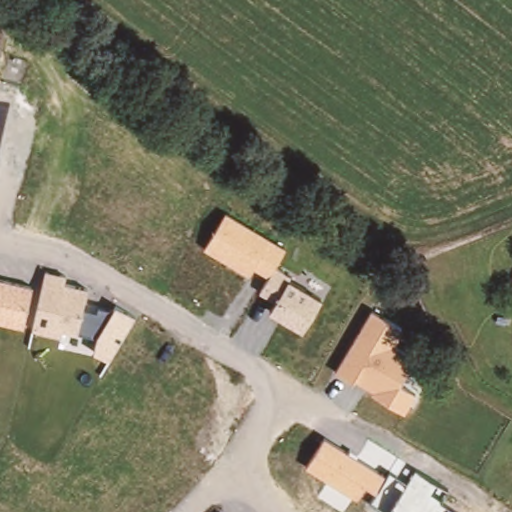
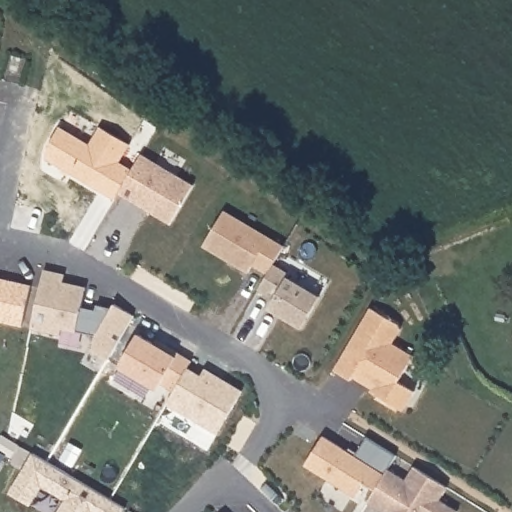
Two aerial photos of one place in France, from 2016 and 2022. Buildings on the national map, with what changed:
new [(52,142),(62,123),(93,141),(104,123),(133,140),(122,158),(135,166),(122,189),(118,195),(50,155),(52,142)]
new [(122,189),(135,166),(145,150),(197,181),(174,220),(142,202),(137,199),(122,189)]
unchanged [(285,245),(276,265),(292,274),(290,278),(321,296),(302,329),(268,311),(275,300),(257,291),(267,274),(252,267),(249,274),(202,247),(225,211),(285,245)]
unchanged [(66,273),(65,284),(87,288),(83,308),(97,312),(98,307),(112,310),(115,306),(133,316),(108,361),(95,354),(96,335),(65,328),(62,336),(31,331),(44,269),(66,273)]
unchanged [(32,284),(23,327),(0,322),(0,278),(32,284)]
unchanged [(370,308),(401,327),(391,346),(411,357),(398,383),(416,392),(405,413),(370,393),(372,390),(353,379),(352,383),(333,371),(370,308)]
new [(158,339),(160,336),(167,340),(196,357),(178,387),(165,379),(162,385),(122,363),(142,330),(158,339)]
new [(219,435),(167,406),(178,387),(189,369),(202,376),(206,370),(242,391),(219,435)]
unchanged [(357,457),(367,438),(395,455),(388,470),(407,480),(415,467),(448,487),(442,502),(459,512),(381,512),(367,504),(375,492),(362,487),(357,498),(305,467),(324,436),(386,474),(357,457)]
new [(123,512),(58,512),(65,500),(42,487),(32,507),(8,494),(33,454),(125,508),(123,512)]

